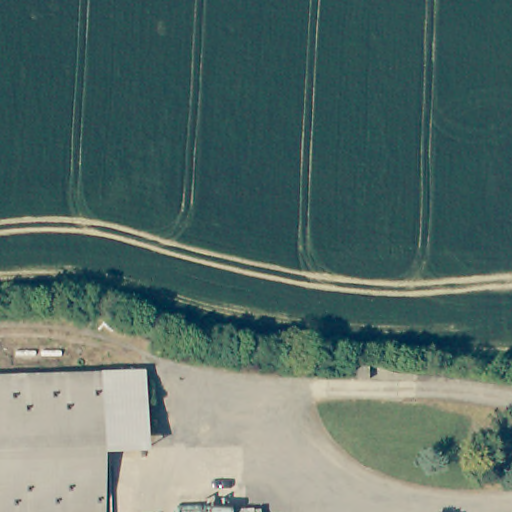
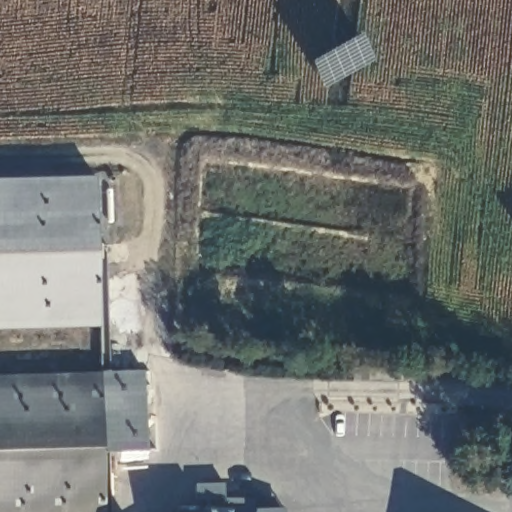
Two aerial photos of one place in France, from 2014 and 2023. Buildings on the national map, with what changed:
new [(99,326),(0,328),(0,178),(94,176),(99,326)]
unchanged [(352,366),(372,366),(372,377),(352,377),(352,366)]
unchanged [(143,373),(146,450),(106,451),(104,374),(143,373)]
unchanged [(108,512),(0,512),(0,375),(104,374),(108,512)]

